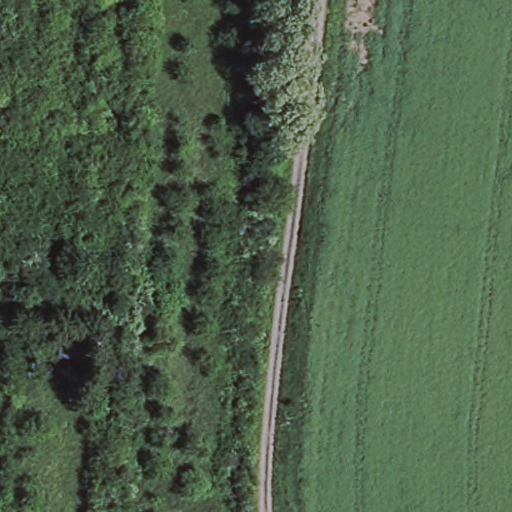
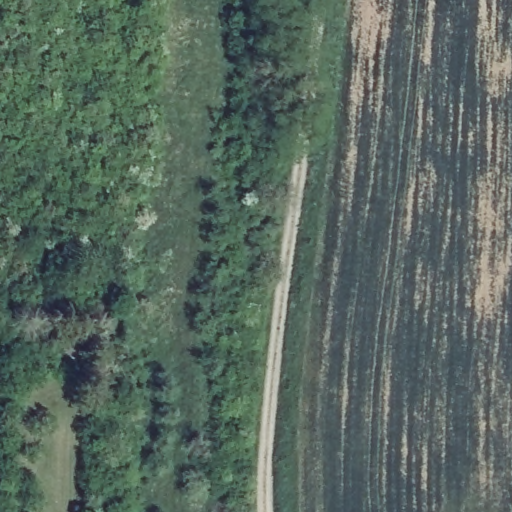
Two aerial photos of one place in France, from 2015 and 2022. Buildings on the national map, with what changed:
unchanged [(60,355),(60,339),(42,337),(42,316),(88,317),(85,339),(82,339),(82,356),(60,355)]

